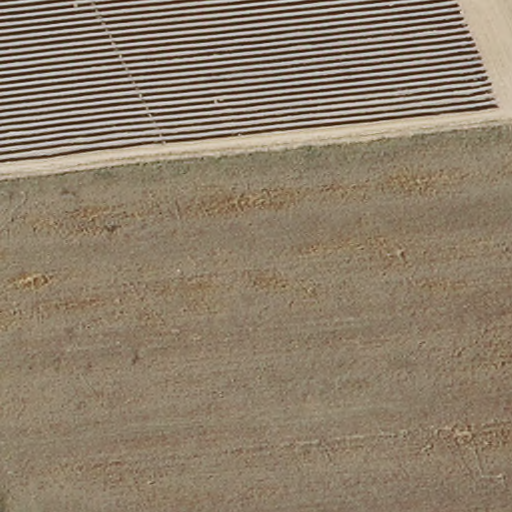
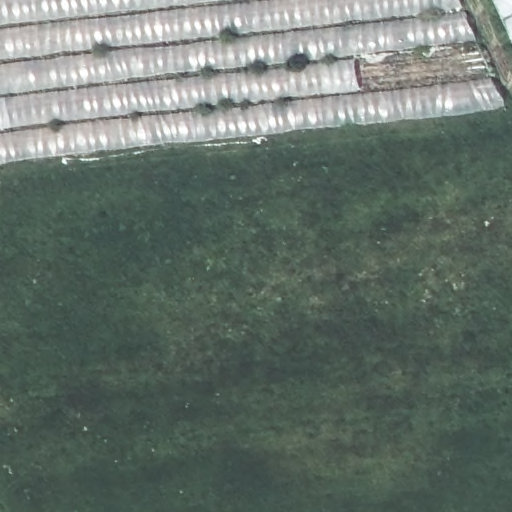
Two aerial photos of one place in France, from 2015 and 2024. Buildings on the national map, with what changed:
new [(504,105),(0,163),(0,0),(454,0),(504,105)]
new [(502,25),(490,0),(512,0),(512,45),(502,25)]

